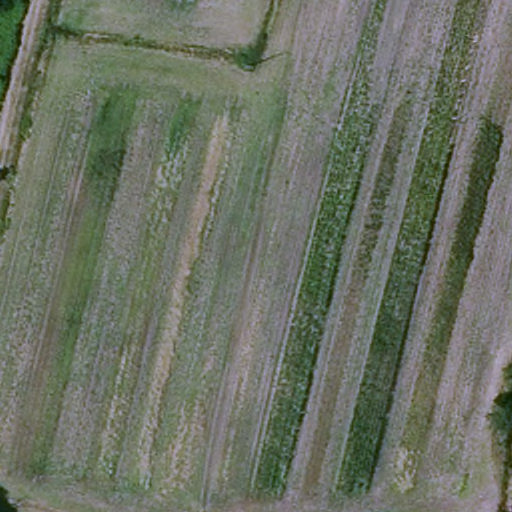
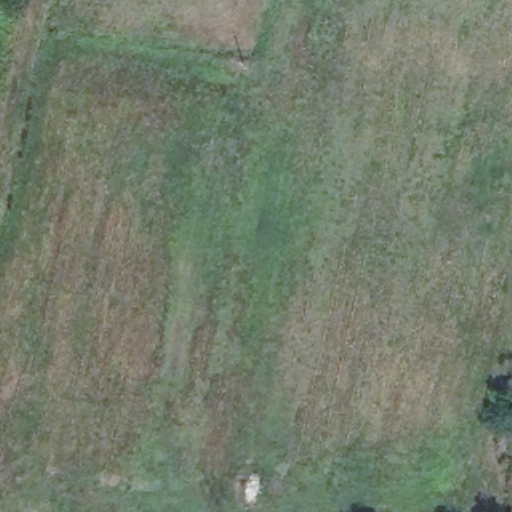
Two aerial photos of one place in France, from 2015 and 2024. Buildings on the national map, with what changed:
[]

